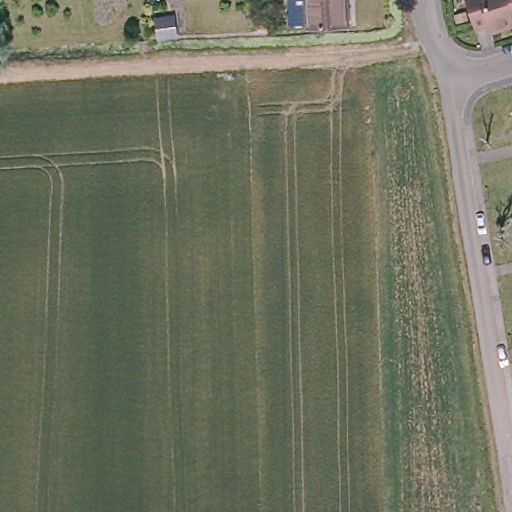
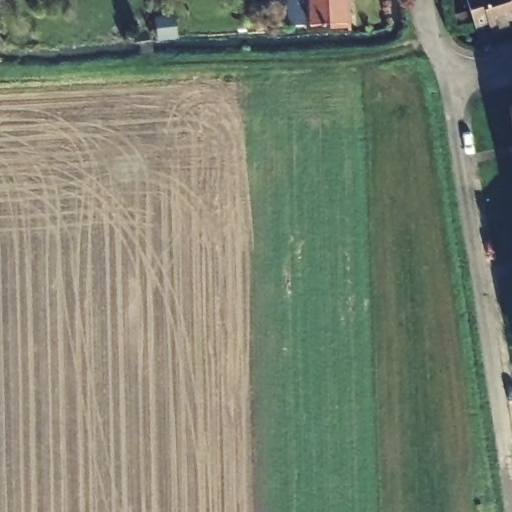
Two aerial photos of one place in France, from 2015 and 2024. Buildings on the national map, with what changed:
unchanged [(309,27),(308,22),(292,22),(291,0),(347,0),(349,25),(309,27)]
unchanged [(512,0),(512,33),(497,39),(494,31),(480,35),(468,1),(471,0),(512,0)]

